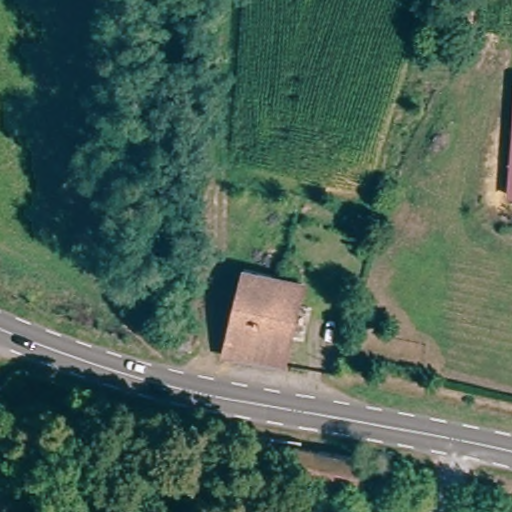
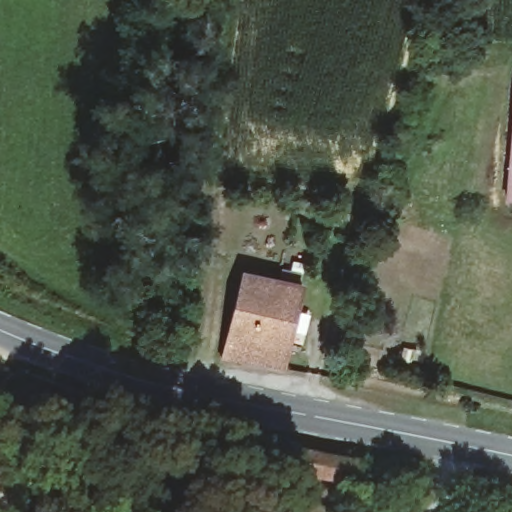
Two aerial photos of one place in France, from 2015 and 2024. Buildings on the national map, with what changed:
unchanged [(245,275),(303,285),(306,275),(334,278),(330,292),(305,290),(284,373),(224,361),(245,275)]
unchanged [(364,465),(360,487),(295,476),(301,452),(364,465)]

